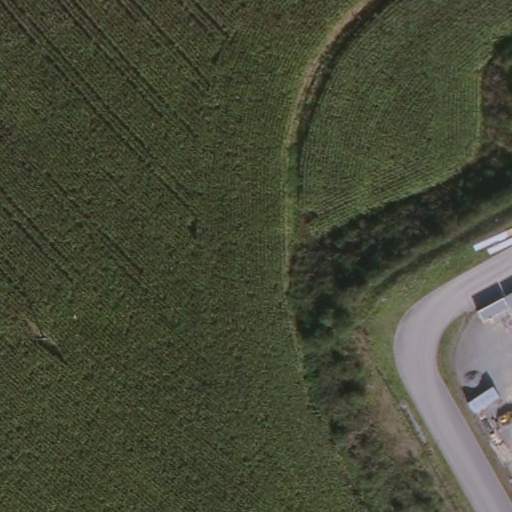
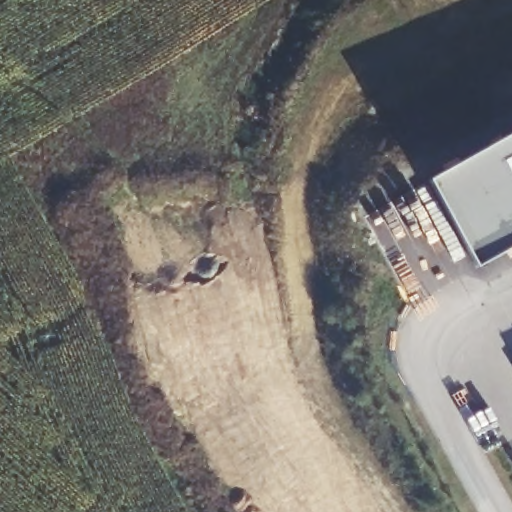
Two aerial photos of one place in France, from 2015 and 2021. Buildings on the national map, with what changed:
new [(475,268),(426,181),(512,133),(512,247),(475,268)]

